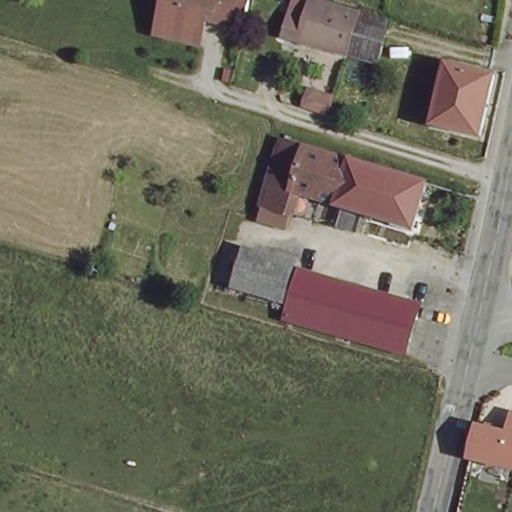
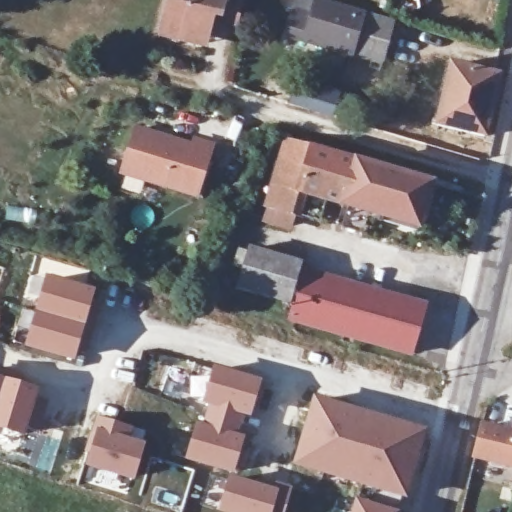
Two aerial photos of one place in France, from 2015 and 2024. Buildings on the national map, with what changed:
unchanged [(164,28),(170,8),(172,0),(240,0),(236,19),(213,13),(208,33),(207,39),(164,28)]
unchanged [(308,37),(315,6),(358,16),(351,46),(308,37)]
unchanged [(358,16),(389,23),(384,54),(351,46),(358,16)]
unchanged [(493,75),(482,132),(439,123),(451,67),(493,75)]
new [(137,200),(119,193),(124,177),(119,175),(134,127),(192,144),(194,138),(214,145),(198,200),(144,183),(137,200)]
unchanged [(295,222),(294,227),(290,226),(268,220),(283,143),(290,144),(313,149),(302,197),(295,222)]
unchanged [(313,149),(355,159),(344,206),(317,200),(302,197),(313,149)]
unchanged [(355,159),(436,176),(426,224),(344,206),(355,159)]
unchanged [(287,302),(259,295),(238,290),(247,253),(268,257),(296,263),(287,302)]
new [(92,291),(89,304),(99,307),(86,353),(75,350),(71,364),(23,350),(43,276),(92,291)]
unchanged [(421,300),(410,344),(292,317),(301,276),(421,300)]
new [(248,420),(243,418),(237,436),(243,438),(239,453),(230,478),(272,491),(274,485),(290,490),(283,512),(216,512),(226,476),(183,463),(193,423),(201,425),(205,407),(200,406),(211,368),(259,382),(248,420)]
new [(36,391),(34,400),(47,403),(39,433),(26,430),(23,441),(0,434),(0,380),(36,391)]
new [(404,503),(399,501),(396,512),(350,512),(353,501),(371,506),(374,494),(291,468),(311,398),(426,433),(404,503)]
new [(131,430),(128,441),(143,445),(133,483),(82,468),(95,430),(92,429),(95,418),(131,430)]
unchanged [(481,424),(512,432),(512,430),(512,471),(472,461),(481,424)]

